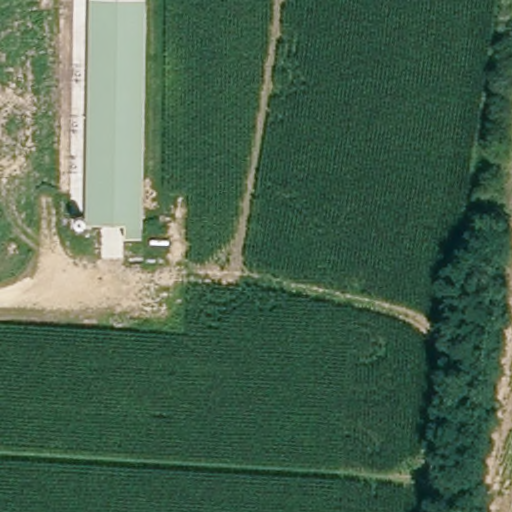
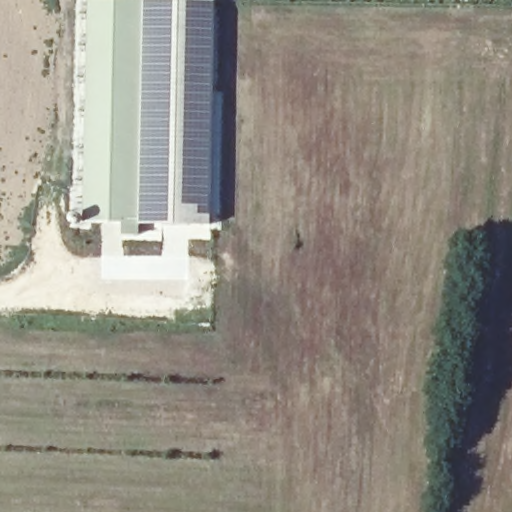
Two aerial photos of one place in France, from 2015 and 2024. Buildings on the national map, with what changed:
unchanged [(138,241),(122,241),(123,225),(89,224),(95,0),(129,0),(146,1),(138,241)]
new [(213,228),(139,225),(146,1),(146,0),(216,0),(213,228)]

